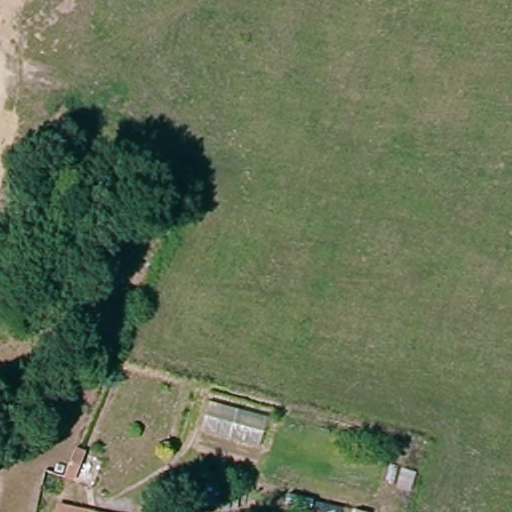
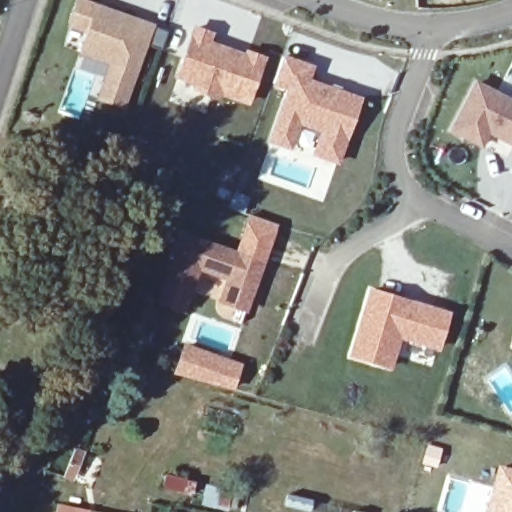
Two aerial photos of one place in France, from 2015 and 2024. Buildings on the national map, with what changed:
new [(108,64),(79,54),(86,34),(67,26),(77,0),(85,0),(155,24),(125,109),(96,99),(108,64)]
new [(195,28),(210,34),(206,43),(220,48),(218,53),(226,55),(227,50),(246,57),(247,53),(263,59),(247,101),(220,91),(212,95),(196,89),(192,81),(177,76),(195,28)]
new [(289,89),(272,83),(281,57),(310,68),(306,81),(358,100),(335,162),(313,154),(322,131),(297,123),(288,147),(270,140),(289,89)]
new [(491,135),(483,147),(450,131),(476,79),(512,98),(512,146),(491,135)]
new [(218,303),(225,281),(200,272),(184,314),(156,305),(181,233),(266,260),(247,313),(218,303)]
new [(368,285),(452,310),(442,351),(401,340),(393,371),(346,357),(368,285)]
new [(230,392),(208,386),(175,376),(185,346),(218,358),(239,365),(230,392)]
new [(498,463),(512,467),(512,512),(487,512),(486,512),(498,463)]
unchanged [(58,508),(78,512),(57,512),(58,508)]

